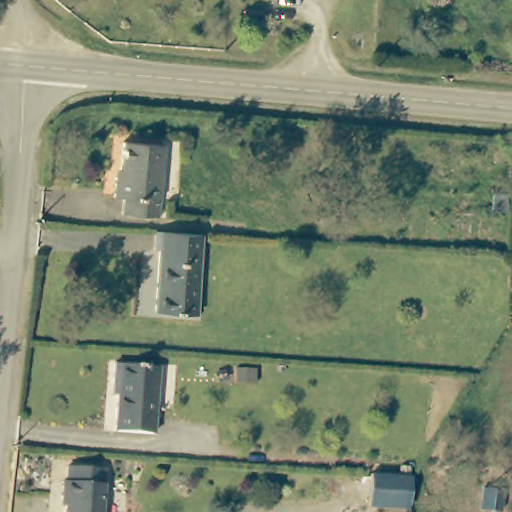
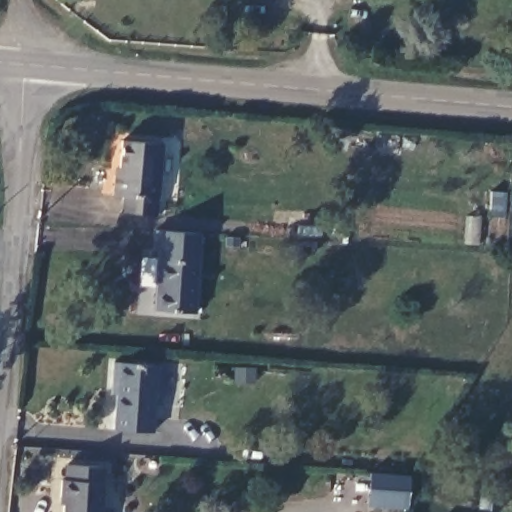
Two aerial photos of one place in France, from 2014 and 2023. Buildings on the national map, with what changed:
unchanged [(114,216),(115,201),(105,200),(108,179),(111,179),(114,145),(155,149),(149,220),(114,216)]
unchanged [(150,317),(156,254),(151,254),(152,235),(197,238),(191,321),(150,317)]
unchanged [(105,398),(106,386),(107,366),(152,369),(149,437),(111,434),(114,399),(105,398)]
unchanged [(63,479),(56,479),(58,461),(64,461),(65,443),(101,446),(96,512),(60,512),(63,479)]
unchanged [(368,507),(371,473),(411,475),(408,511),(368,507)]
unchanged [(484,483),(503,485),(499,506),(481,503),(484,483)]

